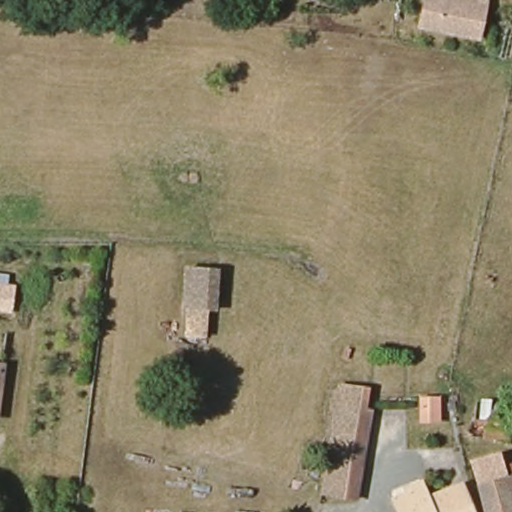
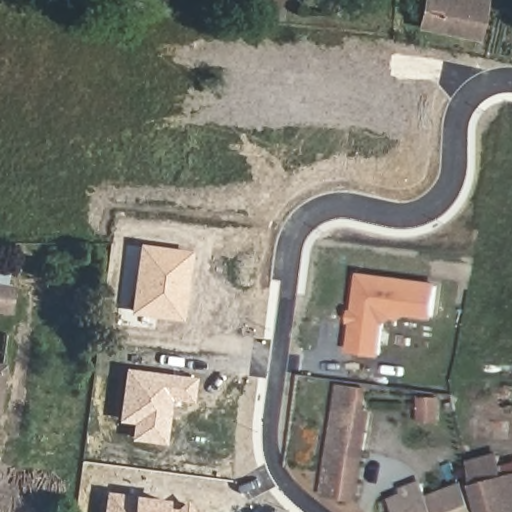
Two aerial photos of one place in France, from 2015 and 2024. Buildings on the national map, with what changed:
unchanged [(417,24),(422,0),(448,0),(479,5),(474,34),(417,24)]
new [(192,250),(183,320),(130,314),(139,242),(192,250)]
new [(352,323),(349,323),(351,309),(354,309),(359,272),(440,282),(434,320),(406,315),(401,321),(393,320),(386,325),(381,356),(348,351),(352,323)]
unchanged [(15,274),(10,312),(0,311),(0,273),(15,274)]
unchanged [(1,363),(0,374),(0,363),(1,363)]
new [(197,377),(193,402),(171,399),(166,443),(131,440),(133,424),(118,421),(125,367),(197,377)]
unchanged [(374,388),(354,500),(321,496),(341,382),(374,388)]
new [(419,396),(440,396),(440,423),(419,423),(419,396)]
unchanged [(501,472),(512,470),(512,512),(487,512),(474,467),(496,459),(501,472)]
unchanged [(417,506),(464,488),(475,512),(402,512),(398,505),(413,498),(417,506)]
new [(103,512),(106,491),(134,495),(169,498),(168,507),(176,508),(188,500),(197,512),(103,512)]

